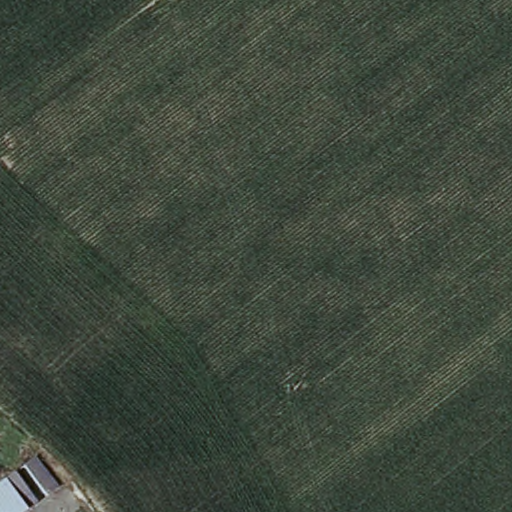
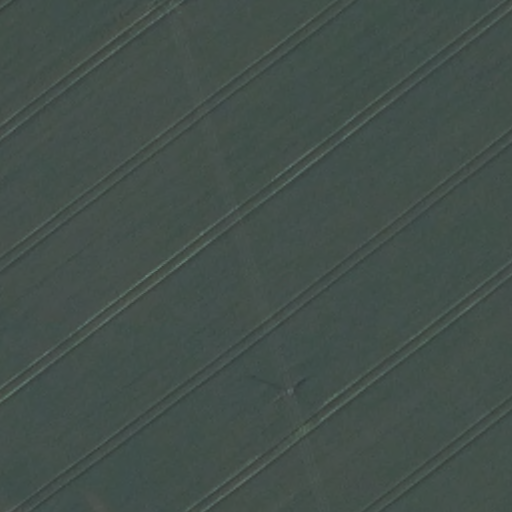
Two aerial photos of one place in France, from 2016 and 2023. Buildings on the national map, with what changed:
demolished [(64,482),(51,496),(25,464),(40,451),(64,482)]
demolished [(23,512),(0,512),(0,482),(19,469),(40,498),(23,512)]

